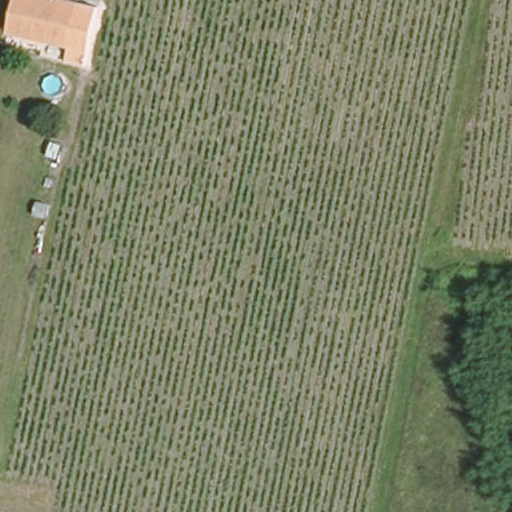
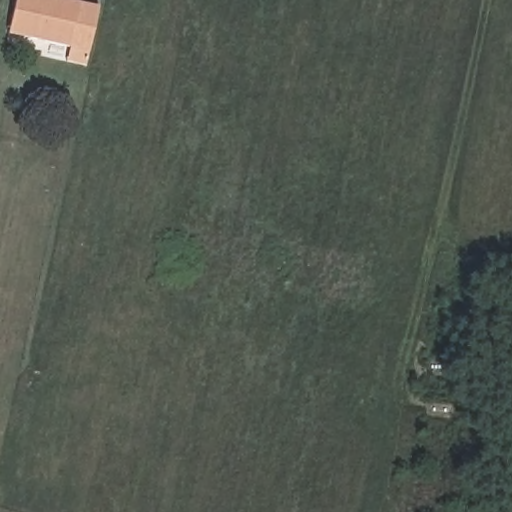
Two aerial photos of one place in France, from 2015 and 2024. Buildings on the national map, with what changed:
unchanged [(18,0),(81,0),(71,44),(11,30),(18,0)]

